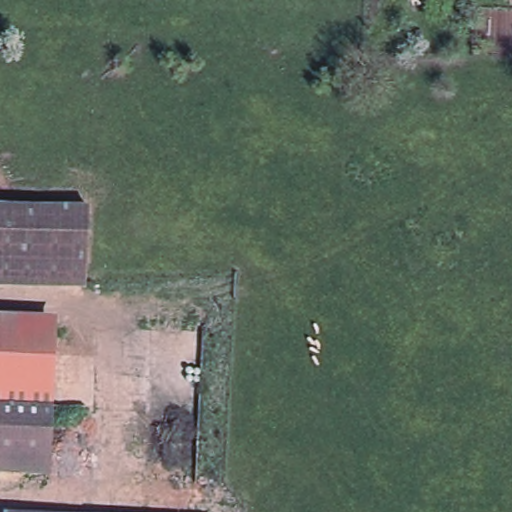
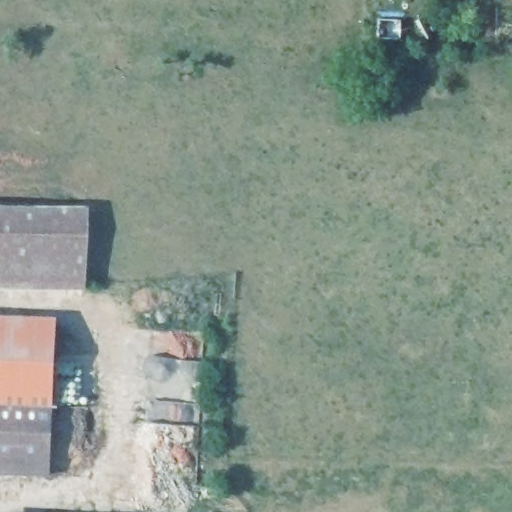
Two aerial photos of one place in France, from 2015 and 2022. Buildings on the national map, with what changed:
unchanged [(82,206),(81,283),(0,282),(0,206),(82,206)]
unchanged [(50,336),(47,470),(0,470),(0,335),(50,336)]

